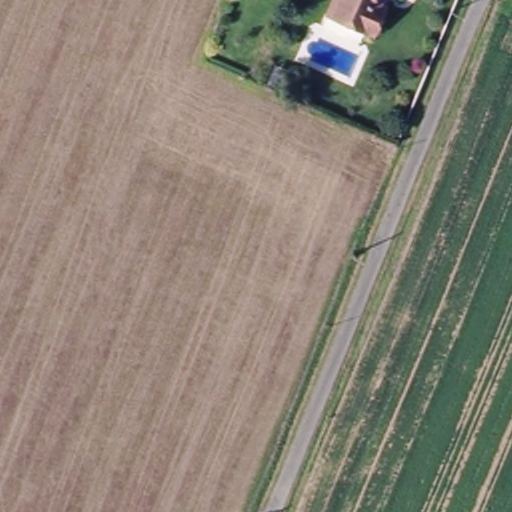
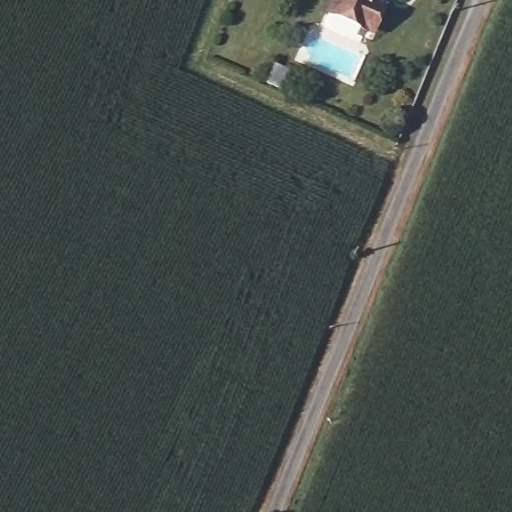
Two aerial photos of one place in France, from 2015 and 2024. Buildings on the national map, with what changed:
unchanged [(378,41),(371,38),(328,19),(336,0),(386,0),(385,3),(392,6),(378,41)]

